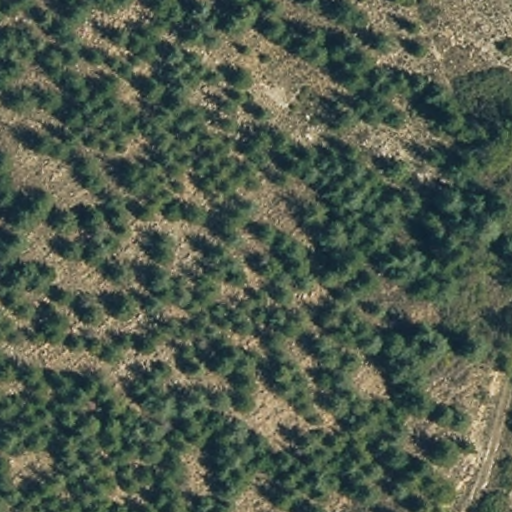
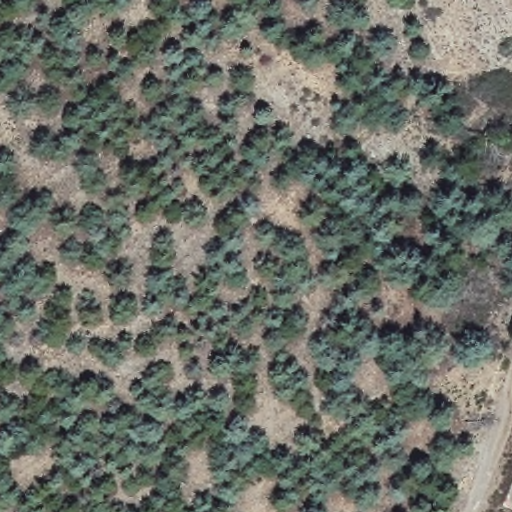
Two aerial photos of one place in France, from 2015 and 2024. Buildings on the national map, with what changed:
unchanged [(512,487),(512,512),(507,512),(504,511),(512,487)]

